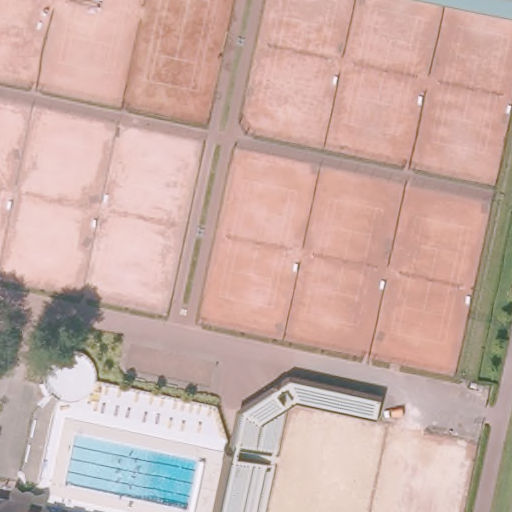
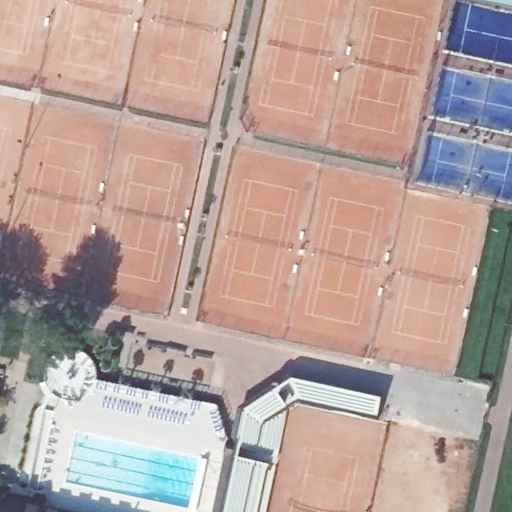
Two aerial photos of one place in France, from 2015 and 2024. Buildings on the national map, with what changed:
unchanged [(457,0),(512,0),(512,11),(457,0)]
unchanged [(291,374),(384,394),(377,419),(294,401),(269,512),(216,512),(239,408),(291,374)]
unchanged [(8,496),(15,486),(46,492),(50,507),(74,512),(0,512),(0,494),(8,496)]

